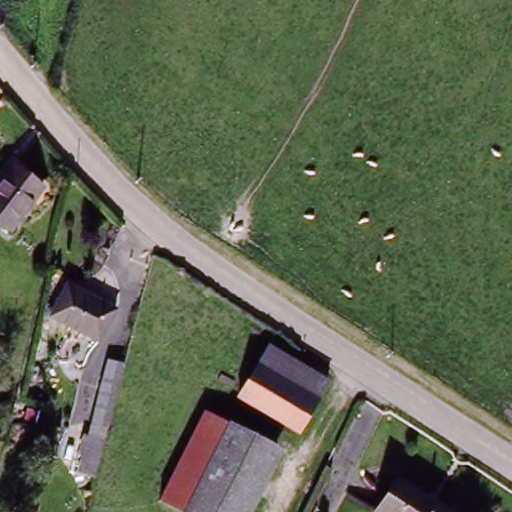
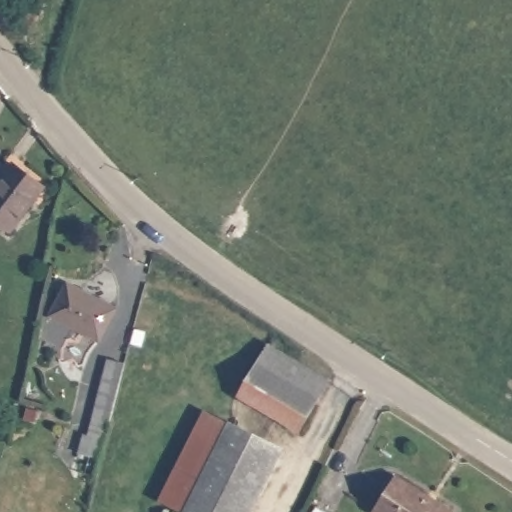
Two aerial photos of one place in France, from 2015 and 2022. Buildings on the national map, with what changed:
unchanged [(0,227),(0,184),(14,169),(41,194),(6,233),(0,227)]
unchanged [(118,311),(101,344),(53,320),(69,288),(118,311)]
unchanged [(259,367),(269,349),(331,384),(321,403),(259,367)]
unchanged [(89,431),(105,367),(121,371),(105,435),(105,436),(89,431)]
unchanged [(302,434),(241,398),(259,367),(321,403),(302,434)]
unchanged [(247,512),(185,512),(173,506),(218,419),(279,450),(247,512)]
unchanged [(452,512),(380,512),(396,480),(454,508),(452,512)]

